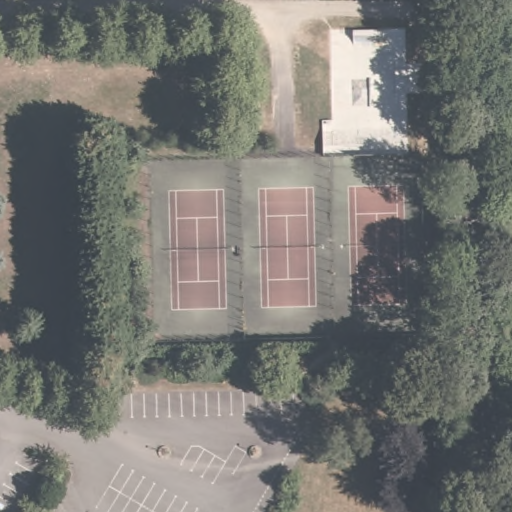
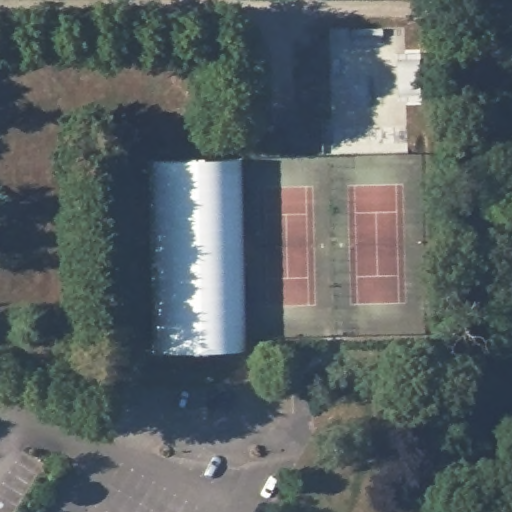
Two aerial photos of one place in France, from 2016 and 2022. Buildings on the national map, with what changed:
new [(241,159),(244,355),(157,356),(153,161),(241,159)]

